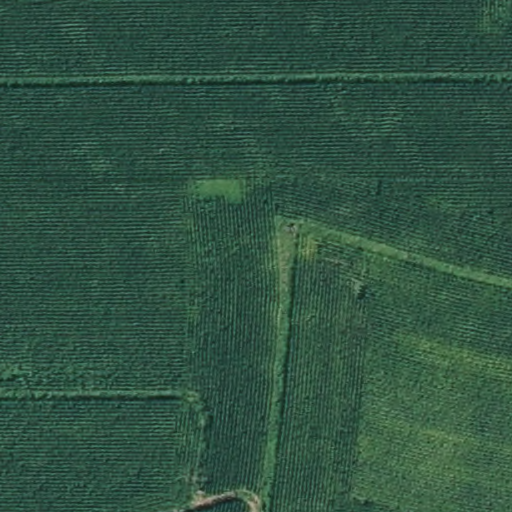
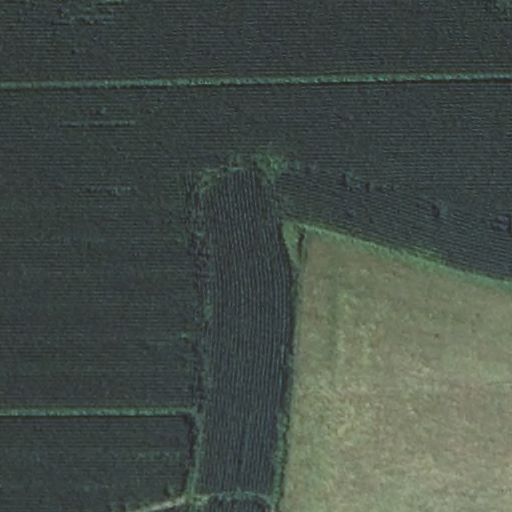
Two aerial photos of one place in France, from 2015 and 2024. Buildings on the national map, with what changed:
[]

